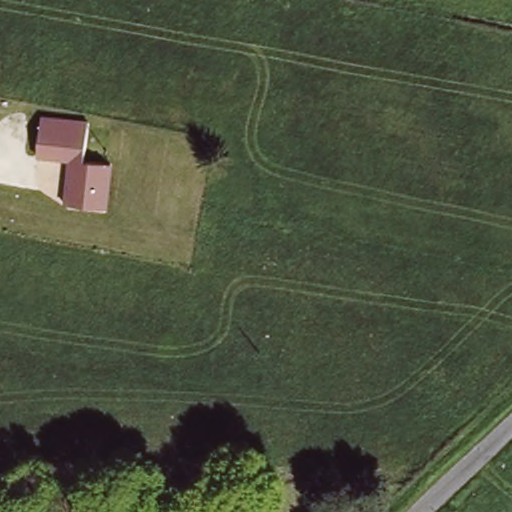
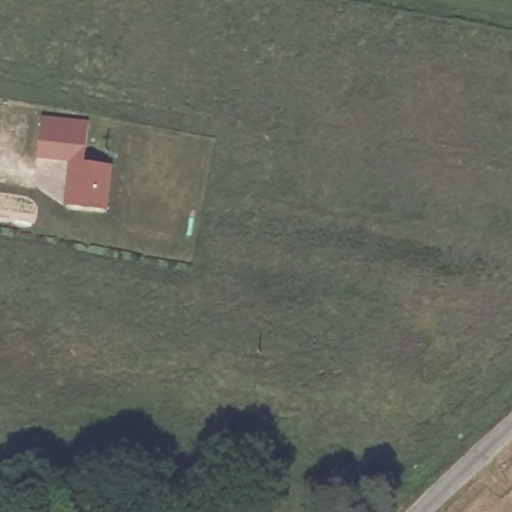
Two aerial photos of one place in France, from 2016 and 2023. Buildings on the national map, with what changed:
unchanged [(62,206),(68,162),(36,156),(41,117),(92,122),(87,151),(112,155),(107,207),(62,206)]

